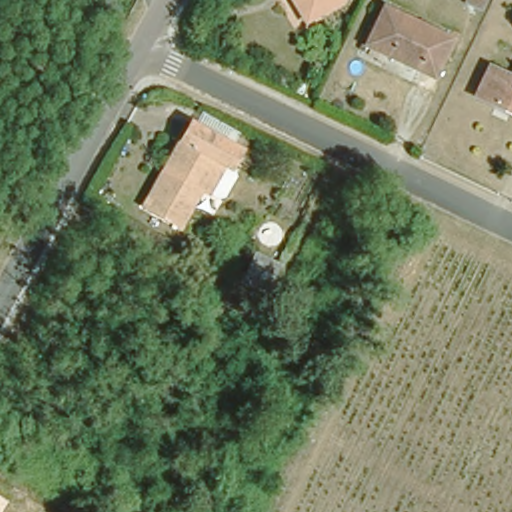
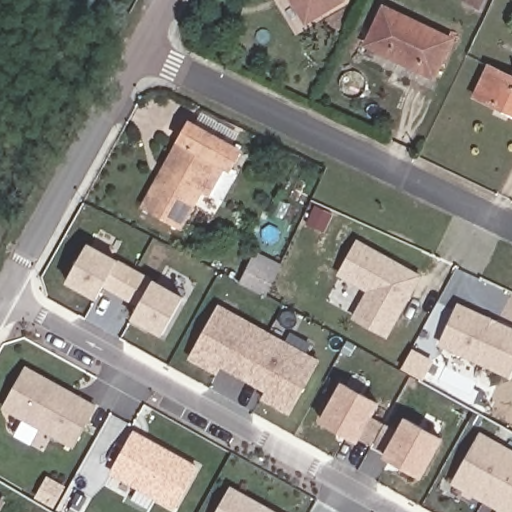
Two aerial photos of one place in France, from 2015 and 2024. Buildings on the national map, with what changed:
unchanged [(293,0),(325,0),(301,14),(293,0)]
unchanged [(384,4),(450,36),(432,75),(365,41),(384,4)]
unchanged [(512,63),(512,112),(472,91),(488,59),(508,70),(512,63)]
unchanged [(195,188),(190,186),(171,219),(136,200),(152,169),(158,172),(161,166),(156,163),(181,118),(228,143),(219,161),(217,160),(201,191),(195,188)]
unchanged [(265,236),(293,250),(291,255),(277,284),(268,280),(248,271),(262,242),(265,236)]
new [(357,319),(372,292),(343,275),(361,243),(391,260),(399,264),(423,278),(389,337),(357,319)]
new [(143,272),(130,295),(112,286),(105,298),(75,281),(95,245),(143,272)]
new [(171,335),(140,318),(147,305),(130,295),(143,272),(191,299),(171,335)]
new [(249,376),(227,364),(222,372),(195,357),(224,306),(273,333),(249,376)]
new [(442,345),(460,306),(490,320),(496,323),(512,330),(512,373),(510,376),(442,345)]
new [(293,412),(266,397),(271,388),(249,376),(273,333),(322,361),(293,412)]
new [(100,406),(78,445),(9,406),(31,367),(100,406)]
new [(345,382),(380,401),(362,435),(359,439),(324,419),(345,382)]
new [(376,443),(362,435),(374,412),(389,420),(403,429),(390,451),(376,443)]
new [(409,418),(444,437),(423,475),(388,455),(409,418)]
new [(179,506),(117,471),(139,431),(173,451),(179,454),(201,467),(179,506)]
new [(454,482),(481,434),(512,451),(512,489),(501,508),(454,482)]
new [(278,512),(223,512),(236,489),(278,512)]
new [(512,489),(512,512),(509,512),(501,508),(512,489)]
unchanged [(0,512),(0,496),(7,501),(0,512)]

